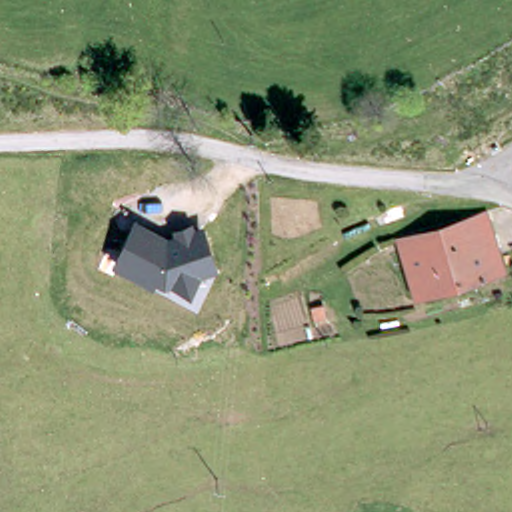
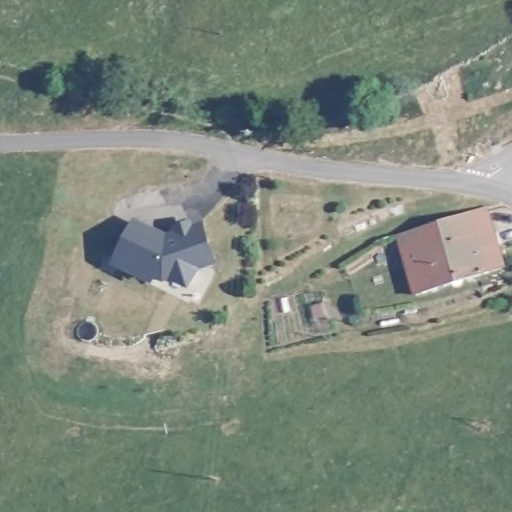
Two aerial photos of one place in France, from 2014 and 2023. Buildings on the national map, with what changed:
unchanged [(170,234),(175,233),(174,226),(194,220),(196,225),(204,222),(217,265),(200,272),(191,290),(172,281),(165,284),(156,280),(154,284),(114,263),(135,219),(170,234)]
unchanged [(510,275),(425,300),(406,242),(490,219),(510,275)]

